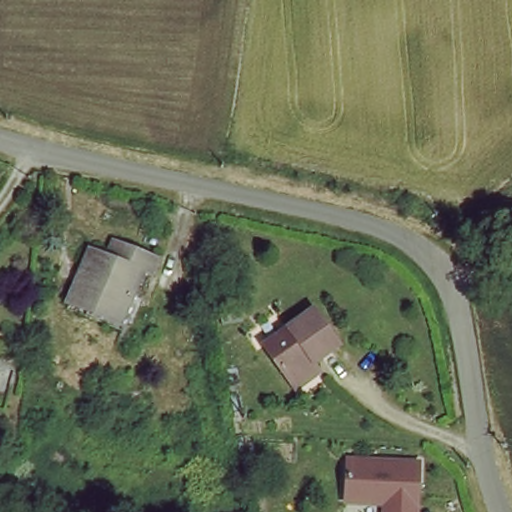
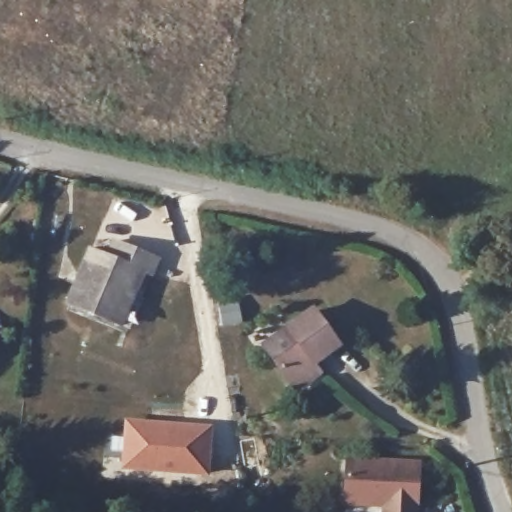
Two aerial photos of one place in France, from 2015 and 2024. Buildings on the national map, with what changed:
unchanged [(161,262),(155,280),(145,276),(136,300),(140,302),(128,331),(78,311),(97,255),(117,262),(123,247),(161,262)]
unchanged [(294,385),(289,377),(267,345),(317,312),(338,348),(313,364),(317,370),(294,385)]
new [(209,476),(122,468),(125,420),(211,427),(209,476)]
unchanged [(418,512),(379,512),(379,501),(342,501),(342,452),(421,457),(418,512)]

